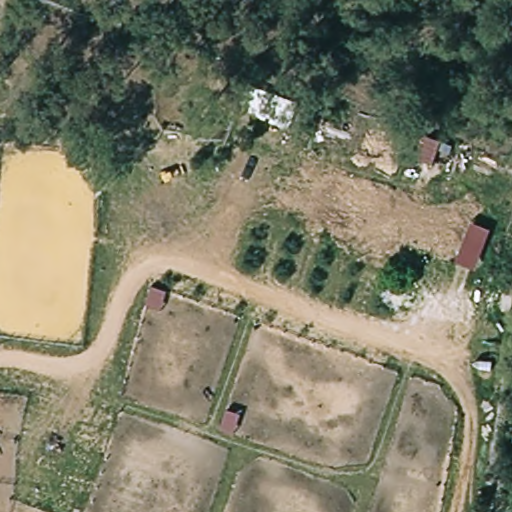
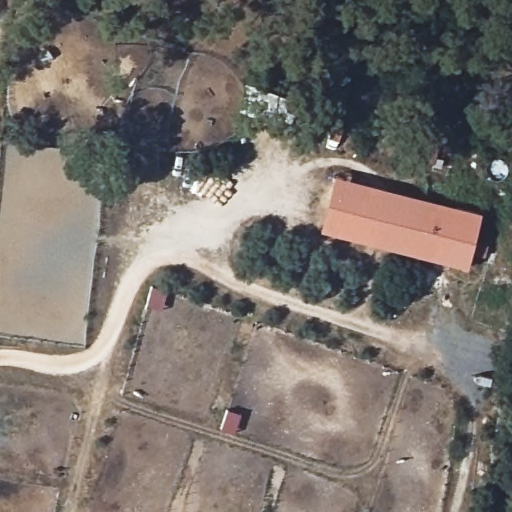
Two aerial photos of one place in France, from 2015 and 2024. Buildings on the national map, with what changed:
new [(481,210),(467,267),(320,230),(335,175),(481,210)]
demolished [(475,272),(416,246),(430,203),(489,229),(475,272)]

